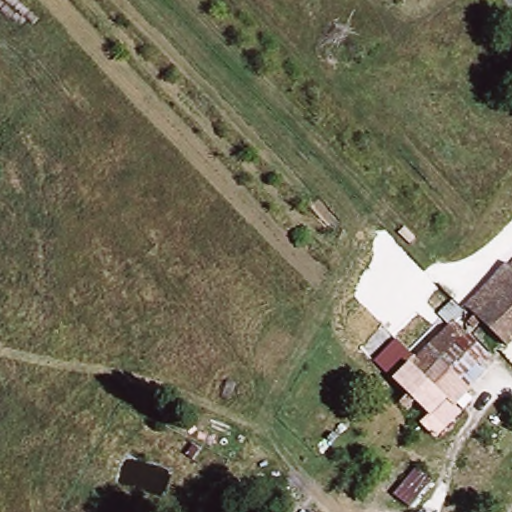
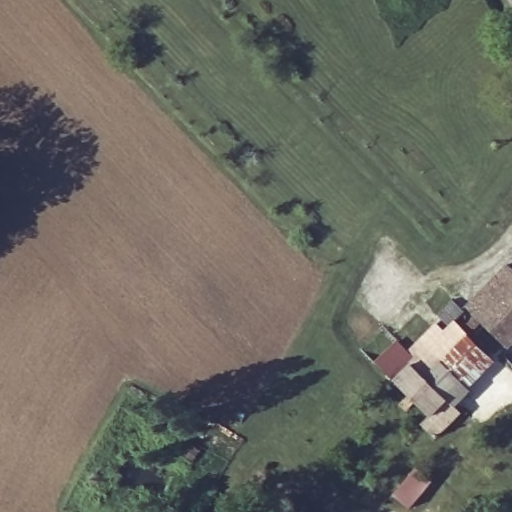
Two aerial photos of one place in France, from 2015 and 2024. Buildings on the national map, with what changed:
unchanged [(512,258),(512,336),(502,346),(462,307),(512,258)]
unchanged [(448,399),(412,362),(441,334),(453,323),(490,361),(478,371),(448,399)]
unchanged [(429,416),(393,380),(412,362),(448,399),(429,416)]
unchanged [(387,489),(410,466),(427,482),(404,505),(387,489)]

